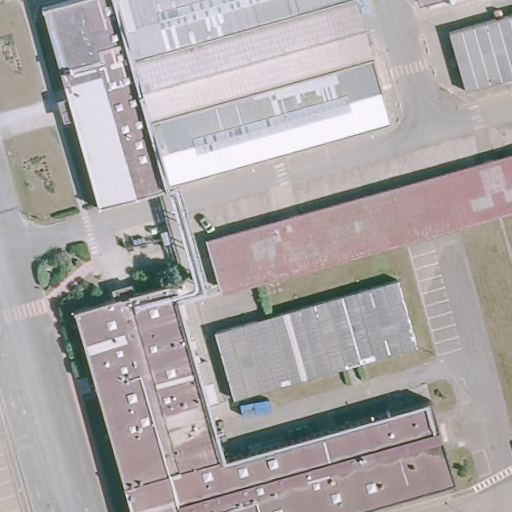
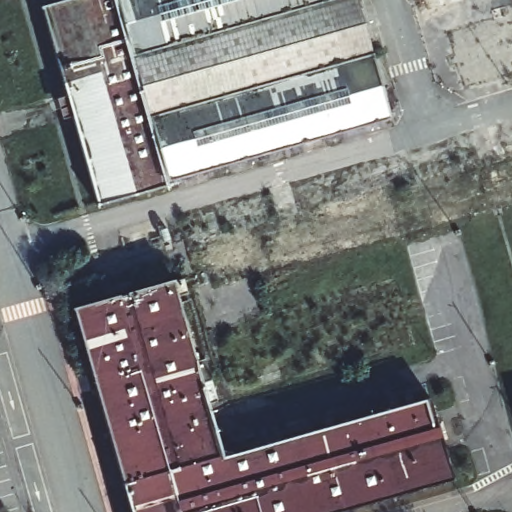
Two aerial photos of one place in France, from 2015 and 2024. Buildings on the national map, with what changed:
unchanged [(136,58),(153,117),(379,54),(397,115),(170,180),(172,186),(100,207),(44,10),(79,0),(333,0),(136,58)]
unchanged [(333,0),(363,0),(379,54),(153,117),(136,58),(333,0)]
unchanged [(512,11),(512,73),(465,86),(451,29),(512,11)]
demolished [(475,216),(209,293),(196,246),(512,154),(512,342),(475,216)]
demolished [(413,345),(231,396),(216,330),(394,280),(413,345)]
unchanged [(353,512),(129,512),(73,312),(172,283),(223,456),(428,397),(452,483),(353,512)]

